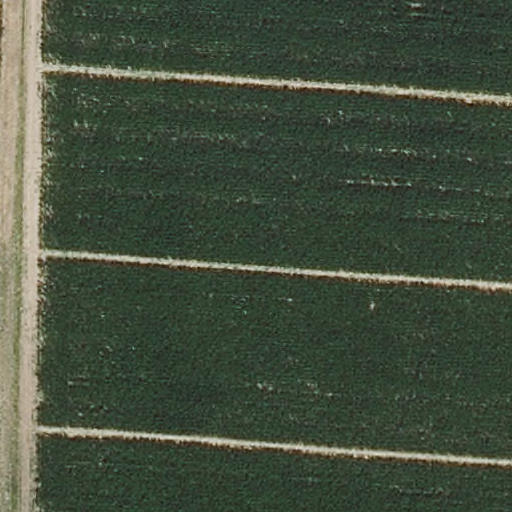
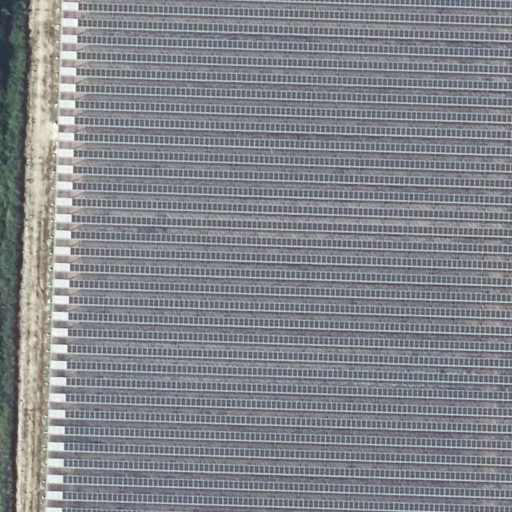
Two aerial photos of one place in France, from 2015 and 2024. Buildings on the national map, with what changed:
new [(512,512),(45,512),(62,0),(512,0),(512,512)]

